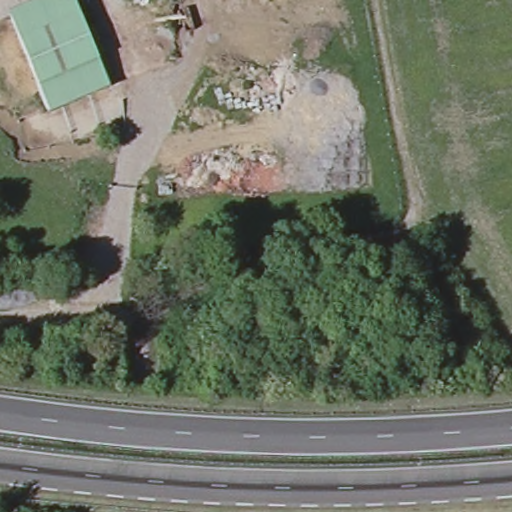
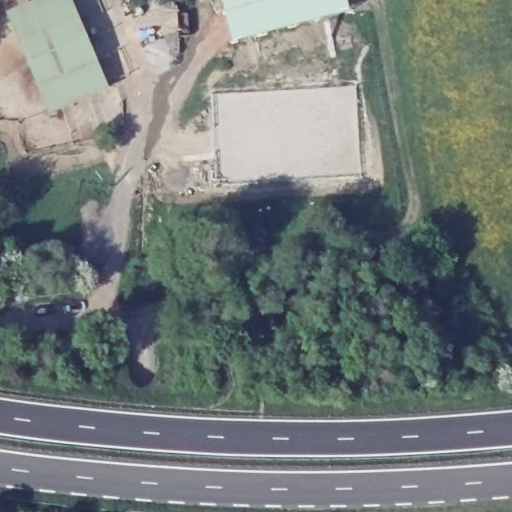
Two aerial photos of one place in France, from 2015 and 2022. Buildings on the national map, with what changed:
unchanged [(71,0),(108,86),(47,114),(4,14),(36,0),(71,0)]
new [(236,43),(225,0),(350,0),(354,16),(236,43)]

